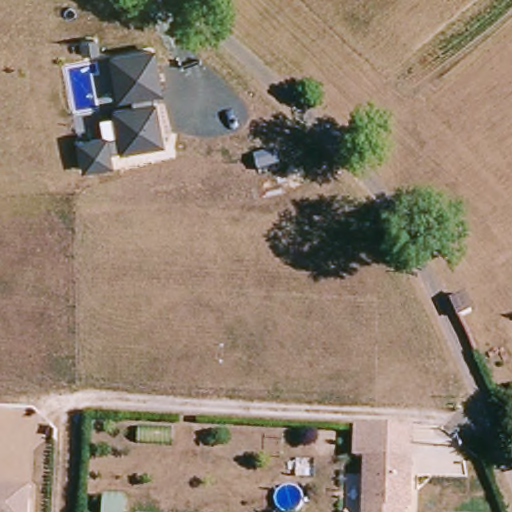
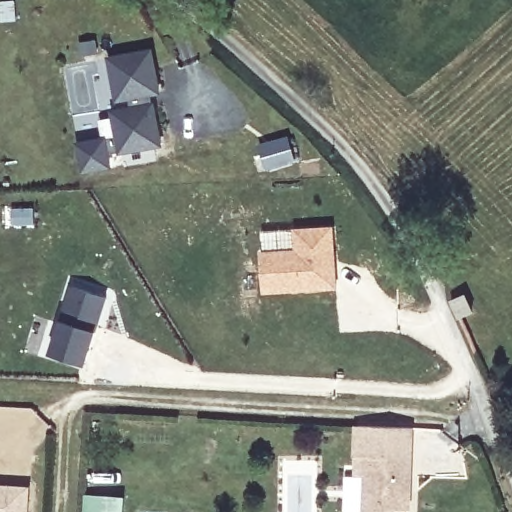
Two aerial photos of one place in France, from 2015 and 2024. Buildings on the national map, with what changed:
unchanged [(162,95),(153,97),(163,146),(112,155),(114,169),(82,174),(76,142),(115,134),(111,112),(132,107),(130,100),(116,104),(107,55),(154,46),(162,95)]
new [(264,252),(299,249),(297,230),(332,227),(337,286),(265,291),(264,252)]
new [(87,364),(50,353),(60,319),(70,285),(108,297),(97,331),(87,364)]
unchanged [(402,512),(363,512),(367,458),(352,455),(354,422),(407,424),(407,461),(405,480),(412,480),(411,497),(404,497),(402,512)]
unchanged [(0,483),(31,484),(30,498),(0,496),(0,483)]
new [(82,493),(126,497),(125,512),(80,512),(82,493)]
unchanged [(0,496),(30,498),(30,512),(0,512),(0,496)]

